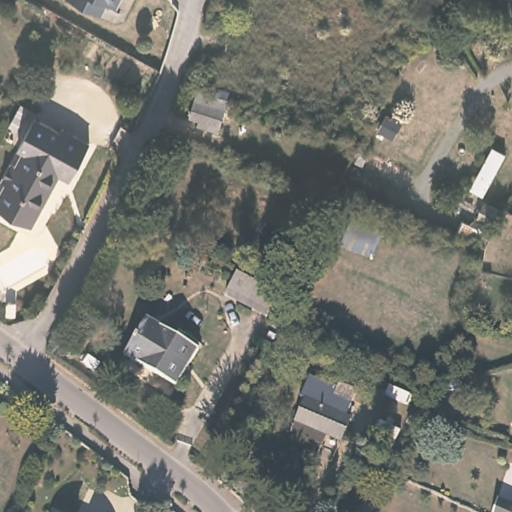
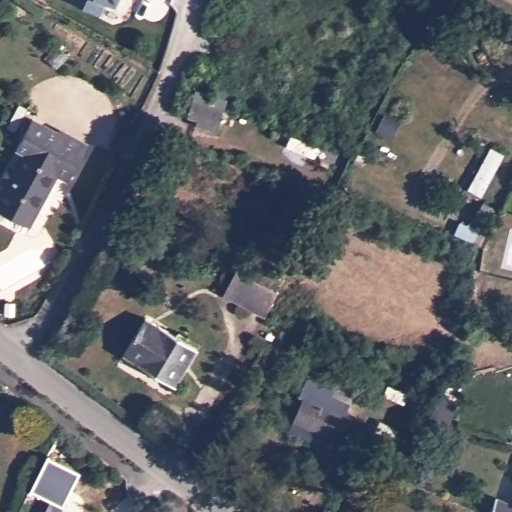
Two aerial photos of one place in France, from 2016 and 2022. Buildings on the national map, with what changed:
unchanged [(109,2),(102,14),(75,0),(120,0),(117,6),(109,2)]
unchanged [(448,23),(436,43),(427,37),(439,18),(448,23)]
unchanged [(229,100),(219,131),(198,124),(199,120),(189,116),(197,90),(229,100)]
unchanged [(59,132),(62,129),(91,144),(70,181),(58,175),(29,226),(0,210),(0,195),(5,187),(0,184),(0,182),(10,166),(20,171),(30,155),(18,148),(35,118),(59,132)]
unchanged [(466,185),(491,140),(509,153),(486,196),(466,185)]
unchanged [(499,211),(491,225),(477,217),(485,203),(499,211)]
unchanged [(351,212),(385,224),(375,255),(343,243),(351,212)]
unchanged [(280,293),(267,316),(225,295),(238,270),(280,293)]
unchanged [(200,349),(177,387),(125,355),(147,317),(200,349)]
unchanged [(311,377),(322,380),(328,364),(345,371),(329,405),(355,414),(345,439),(326,432),(322,443),(289,427),(311,377)]
new [(30,490),(48,455),(82,472),(64,509),(30,490)]
unchanged [(498,498),(512,502),(512,512),(492,512),(498,498)]

